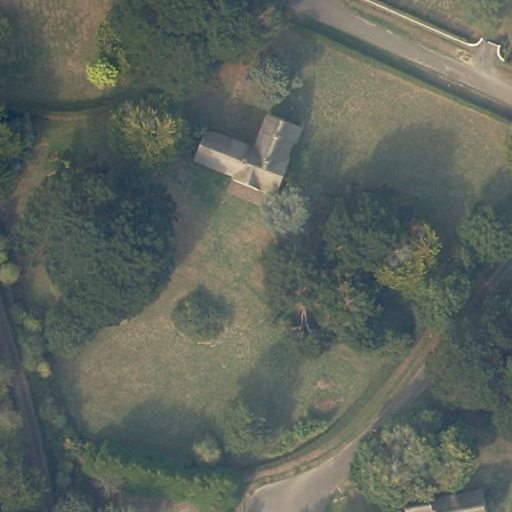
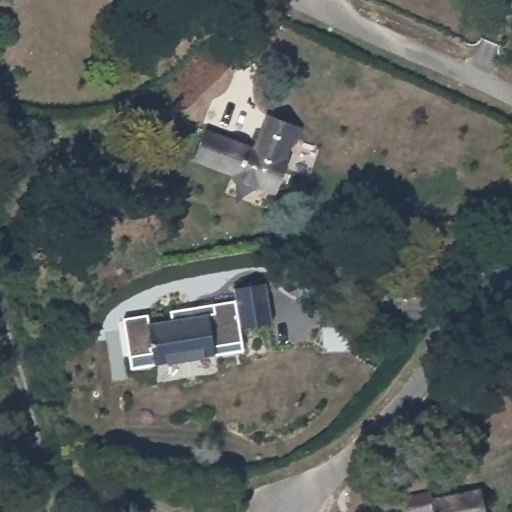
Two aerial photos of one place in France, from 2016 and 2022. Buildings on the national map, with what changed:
unchanged [(290,126),(284,143),(280,142),(275,159),(279,160),(267,192),(250,186),(249,190),(224,180),(227,173),(186,157),(196,130),(247,147),(259,114),(290,126)]
new [(123,317),(148,313),(150,322),(172,318),(171,309),(236,299),(234,288),(266,283),(273,321),(237,326),(241,349),(215,354),(204,356),(169,361),(155,363),(132,367),(123,317)]
unchanged [(405,512),(404,507),(432,502),(433,509),(482,500),(484,512),(405,512)]
unchanged [(3,512),(3,505),(20,502),(21,512),(3,512)]

